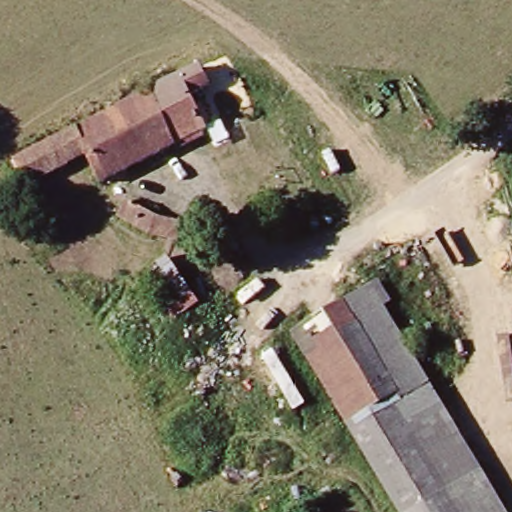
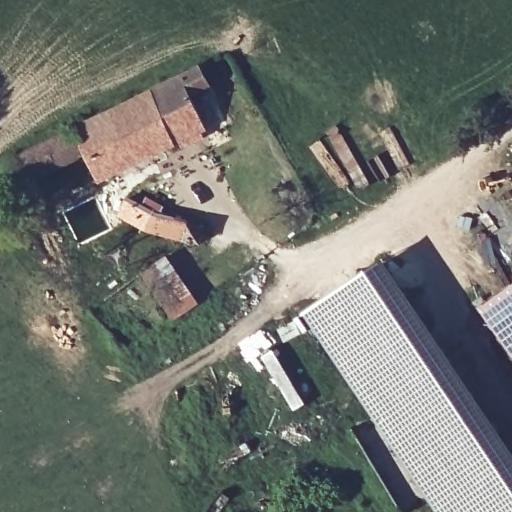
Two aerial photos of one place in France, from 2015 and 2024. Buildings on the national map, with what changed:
unchanged [(26,191),(13,165),(208,63),(222,88),(202,102),(216,128),(157,159),(117,182),(99,152),(26,191)]
unchanged [(140,219),(145,204),(224,231),(220,245),(140,219)]
unchanged [(206,293),(211,303),(184,318),(152,270),(179,255),(186,266),(194,261),(211,288),(206,293)]
unchanged [(391,305),(432,374),(352,420),(298,330),(385,279),(398,301),(391,305)]
new [(512,354),(481,308),(512,286),(512,354)]
unchanged [(490,470),(417,512),(410,512),(352,420),(432,374),(490,470)]
unchanged [(512,512),(417,512),(490,470),(512,511),(512,512)]

